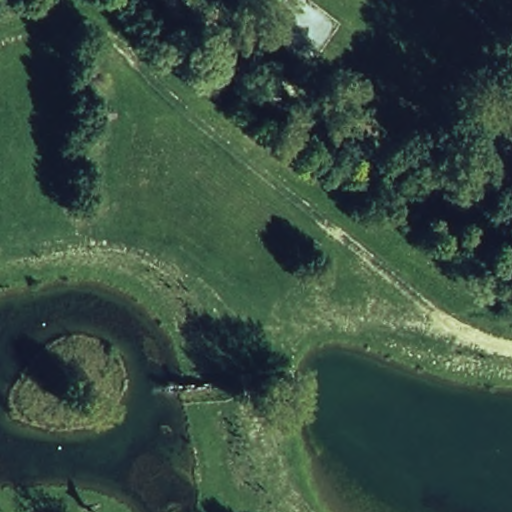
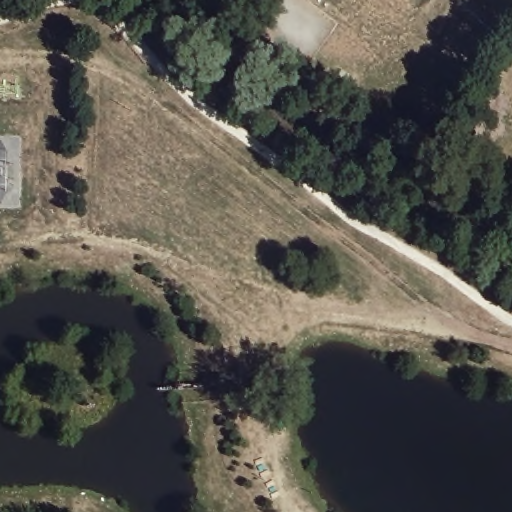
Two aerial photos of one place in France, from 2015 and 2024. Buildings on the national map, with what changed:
[]

